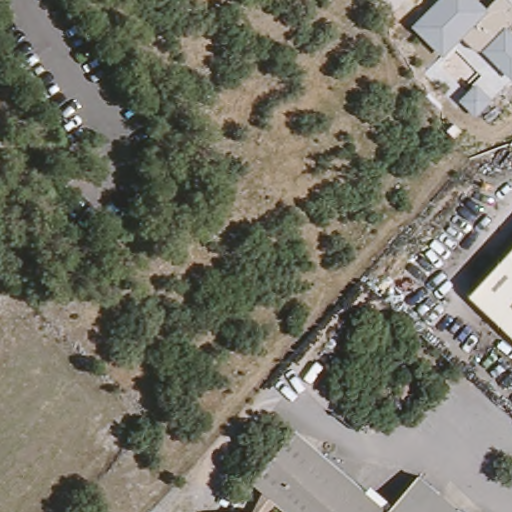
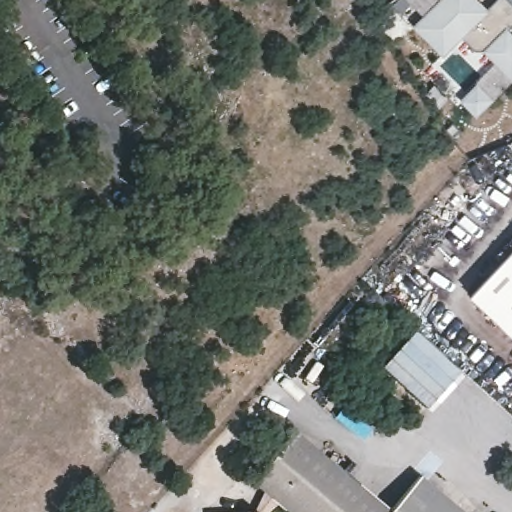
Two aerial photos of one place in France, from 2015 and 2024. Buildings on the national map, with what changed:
unchanged [(442,0),(476,0),(487,11),(498,0),(508,0),(512,3),(512,27),(511,29),(512,30),(512,80),(484,51),(479,54),(463,39),(444,59),(414,28),(442,0)]
new [(508,0),(512,0),(512,3),(508,0)]
unchanged [(470,289),(512,244),(512,328),(470,289)]
new [(425,407),(380,367),(414,329),(459,371),(425,407)]
unchanged [(253,483),(299,429),(393,506),(423,472),(470,512),(288,512),(253,483)]
unchanged [(252,506),(259,512),(216,512),(252,506)]

